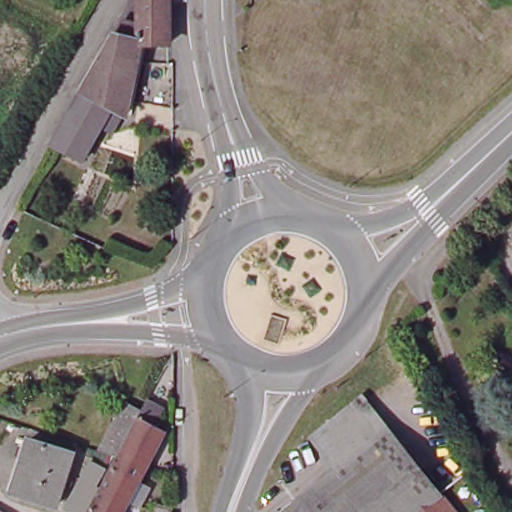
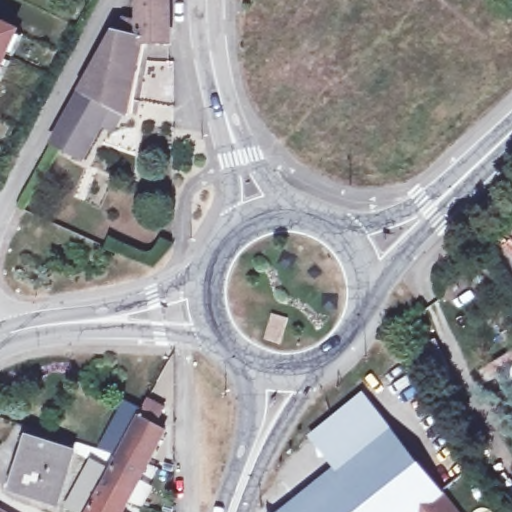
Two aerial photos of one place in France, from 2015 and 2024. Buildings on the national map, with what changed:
unchanged [(82,164),(52,147),(54,142),(121,25),(137,26),(135,0),(165,0),(165,48),(135,45),(125,103),(112,101),(103,120),(82,164)]
new [(0,65),(0,19),(17,27),(0,65)]
unchanged [(163,403),(155,420),(166,426),(140,477),(121,512),(84,512),(100,482),(102,483),(120,451),(118,450),(103,445),(129,400),(142,406),(145,407),(150,396),(163,403)]
unchanged [(308,435),(357,396),(383,428),(335,466),(308,435)]
unchanged [(437,495),(417,512),(277,512),(335,466),(383,428),(437,495)]
unchanged [(73,445),(57,497),(16,484),(32,433),(73,445)]
unchanged [(92,454),(105,461),(80,506),(70,500),(67,498),(75,482),(92,454)]
unchanged [(451,512),(417,512),(437,495),(451,512)]
unchanged [(8,512),(0,512),(0,508),(8,512)]

